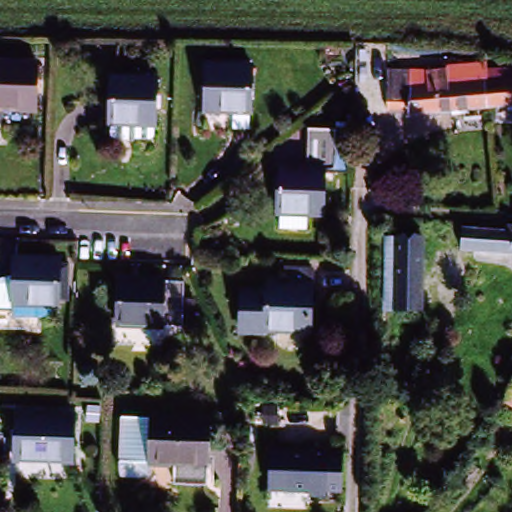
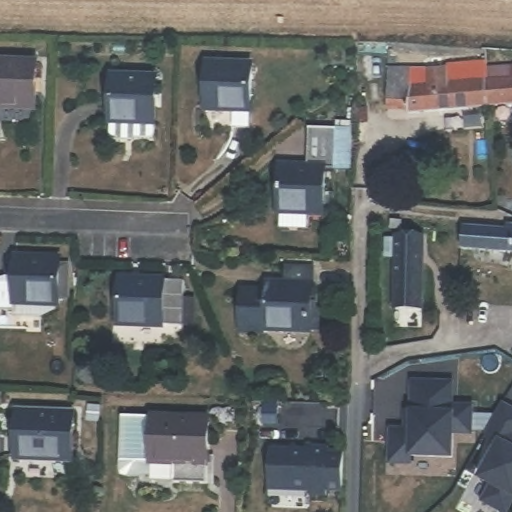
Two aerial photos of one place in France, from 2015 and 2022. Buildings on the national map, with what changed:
unchanged [(0,57),(40,57),(40,102),(0,102),(0,57)]
unchanged [(231,117),(232,105),(205,103),(208,59),(255,61),(252,105),(252,119),(231,117)]
unchanged [(107,111),(108,67),(159,68),(157,114),(156,131),(107,130),(107,111)]
unchanged [(381,115),(378,72),(475,68),(476,71),(505,69),(506,79),(512,78),(512,105),(477,110),(403,119),(403,115),(381,115)]
unchanged [(284,220),(284,206),(282,206),(285,160),(308,161),(311,124),(345,125),(342,163),(330,163),(327,209),(314,208),(313,221),(284,220)]
unchanged [(465,247),(466,224),(505,229),(512,230),(512,252),(465,247)]
unchanged [(395,303),(396,236),(417,237),(416,303),(395,303)]
unchanged [(20,312),(0,312),(0,279),(19,279),(19,255),(64,256),(62,302),(20,302),(20,312)]
unchanged [(240,331),(241,303),(257,303),(257,288),(277,288),(277,273),(302,273),(302,289),(302,312),(315,312),(315,333),(302,333),(267,332),(266,341),(240,341),(240,331)]
unchanged [(115,330),(116,285),(175,285),(175,287),(186,287),(187,317),(176,317),(176,331),(115,330)]
new [(456,406),(474,406),(472,435),(455,435),(453,458),(414,460),(413,465),(388,465),(389,426),(408,424),(408,410),(410,380),(453,381),(456,406)]
demolished [(507,405),(512,398),(512,409),(507,405)]
new [(509,512),(498,512),(480,502),(487,485),(477,478),(495,445),(482,437),(502,403),(512,409),(512,506),(509,512)]
unchanged [(17,456),(17,409),(76,410),(75,458),(17,456)]
unchanged [(180,463),(152,462),(154,418),(212,420),(210,463),(209,486),(179,486),(180,463)]
unchanged [(317,447),(317,451),(333,452),(332,485),(317,485),(317,488),(277,488),(277,447),(317,447)]
demolished [(465,512),(430,512),(461,484),(476,496),(465,512)]

